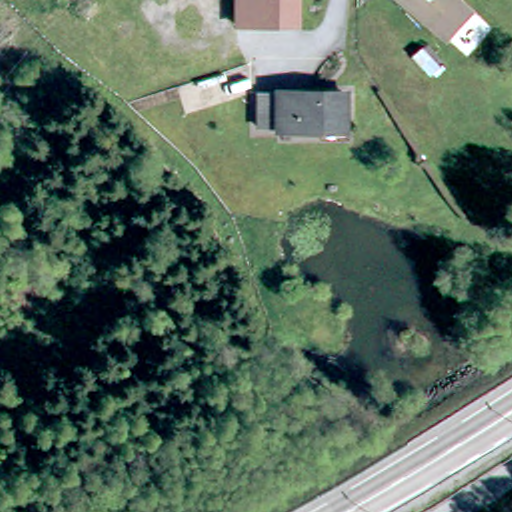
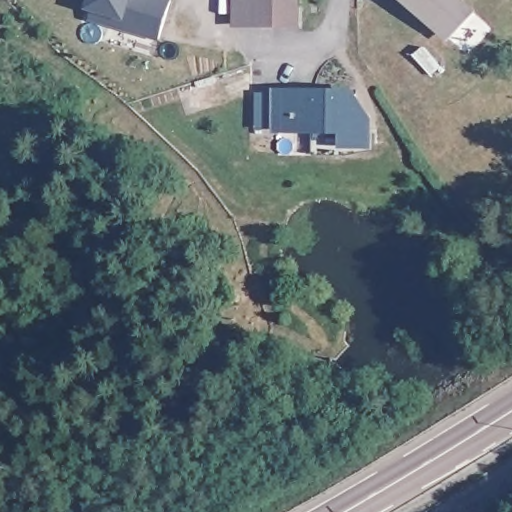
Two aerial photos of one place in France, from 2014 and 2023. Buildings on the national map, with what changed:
new [(90,19),(92,11),(87,9),(90,0),(171,0),(160,40),(90,19)]
unchanged [(245,21),(246,0),(306,0),(305,25),(245,21)]
unchanged [(475,12),(456,33),(450,34),(438,22),(414,0),(468,0),(475,6),(475,12)]
unchanged [(424,55),(433,47),(448,64),(439,73),(424,55)]
unchanged [(322,139),(300,138),(281,137),(281,134),(261,134),(263,101),(283,103),(283,102),(284,100),(303,101),(348,104),(347,129),(345,140),(345,150),(321,149),(322,139)]

